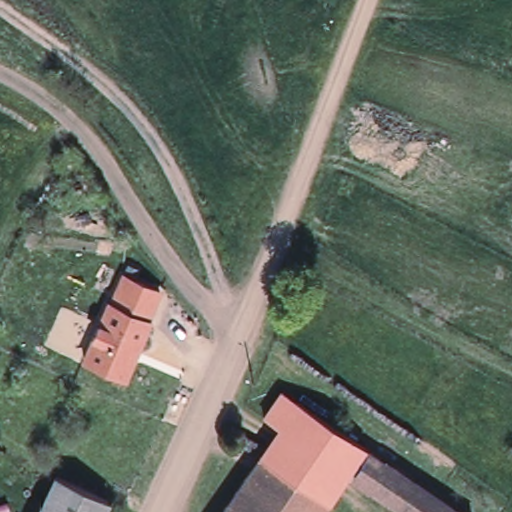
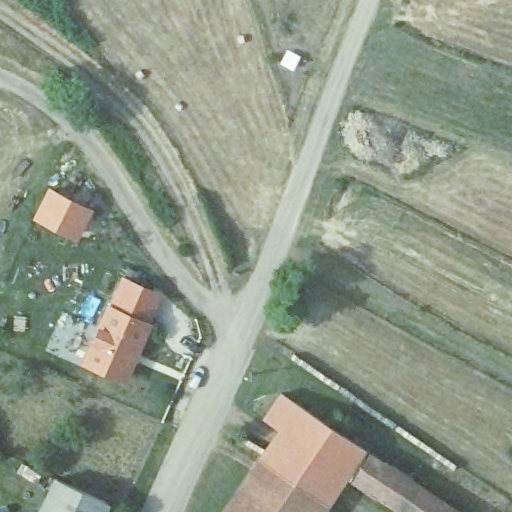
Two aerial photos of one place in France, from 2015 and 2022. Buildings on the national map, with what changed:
new [(53,191),(88,210),(74,236),(39,218),(53,191)]
unchanged [(123,276),(168,295),(129,383),(81,362),(123,276)]
unchanged [(263,418),(281,391),(365,448),(364,450),(414,483),(415,481),(461,512),(401,512),(343,474),(326,501),(325,502),(258,458),(259,456),(278,428),(263,418)]
unchanged [(325,502),(319,512),(222,512),(258,458),(325,502)]
unchanged [(57,478),(109,502),(105,512),(41,512),(57,478)]

